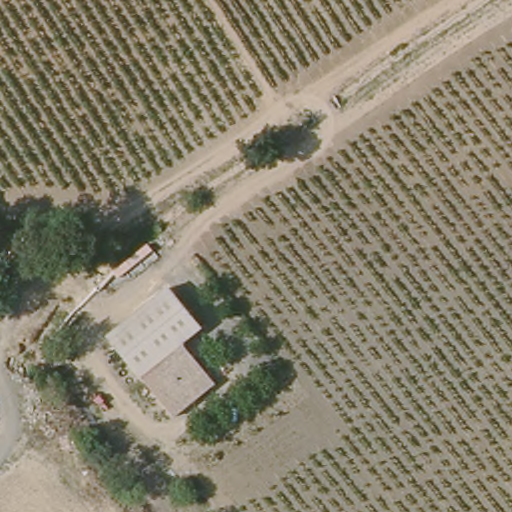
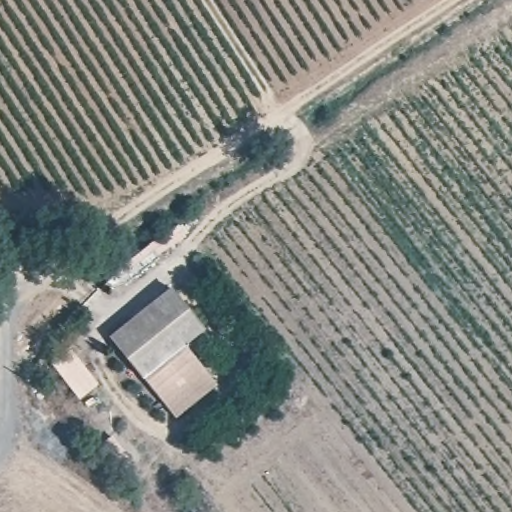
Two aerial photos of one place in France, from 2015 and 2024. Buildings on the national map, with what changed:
unchanged [(170,286),(205,331),(185,347),(214,383),(172,416),(106,337),(170,286)]

